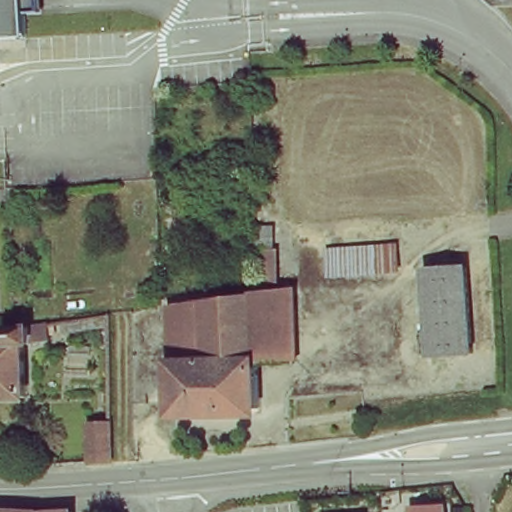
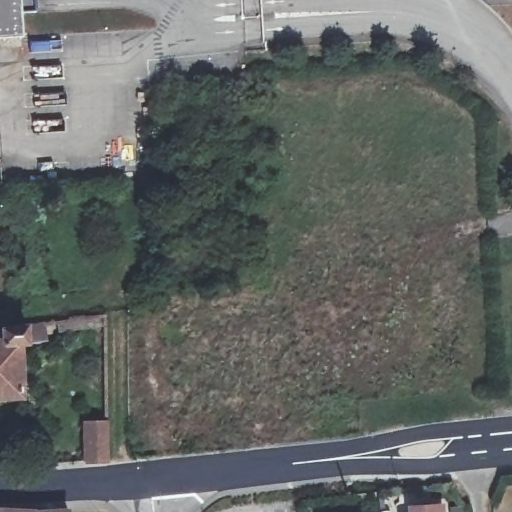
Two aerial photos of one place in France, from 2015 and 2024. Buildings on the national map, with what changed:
unchanged [(0,38),(0,0),(14,0),(15,37),(0,38)]
demolished [(396,240),(398,268),(324,273),(322,245),(396,240)]
demolished [(470,348),(428,353),(420,265),(462,260),(470,348)]
demolished [(167,412),(166,358),(165,309),(253,297),(255,341),(292,339),(293,360),(255,362),(256,409),(167,412)]
unchanged [(6,328),(12,327),(28,326),(42,324),(43,341),(19,342),(21,396),(0,397),(0,341),(6,341),(6,328)]
unchanged [(90,458),(91,420),(110,418),(110,456),(90,458)]
unchanged [(410,506),(445,503),(445,512),(411,512),(410,506)]
unchanged [(30,512),(62,511),(62,512),(30,512)]

